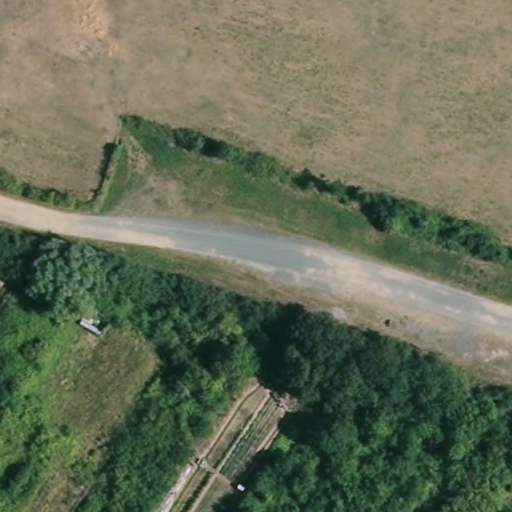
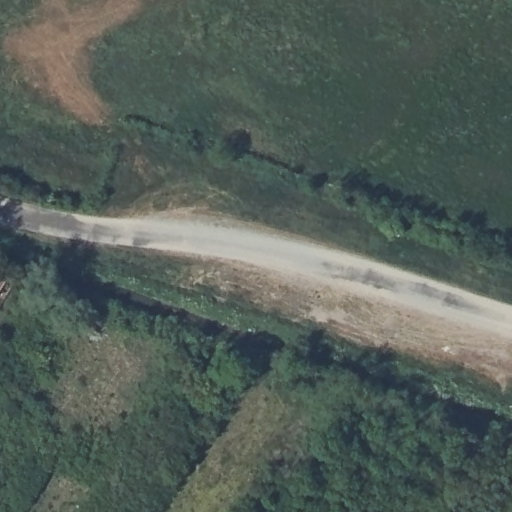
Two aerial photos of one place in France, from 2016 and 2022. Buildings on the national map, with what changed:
unchanged [(107,317),(99,336),(76,327),(89,304),(107,317)]

